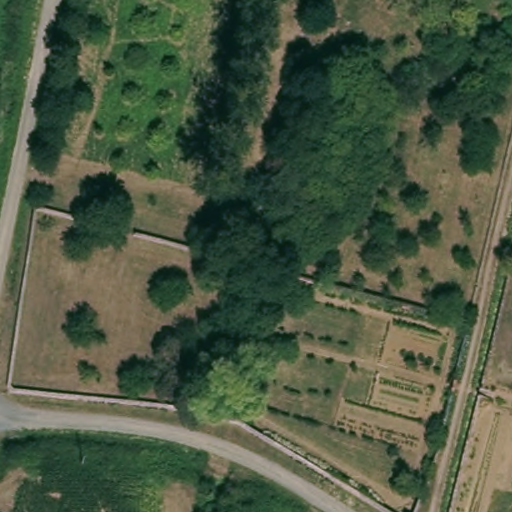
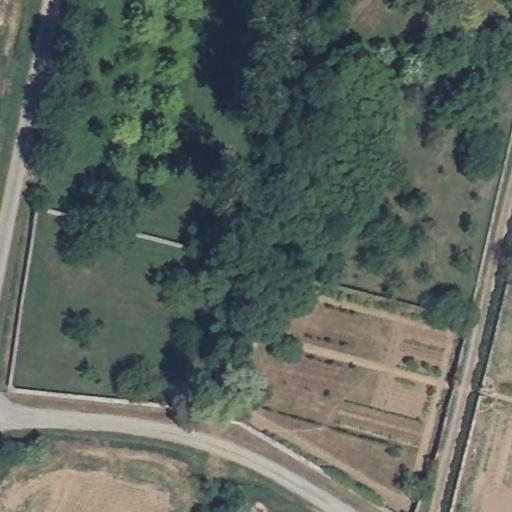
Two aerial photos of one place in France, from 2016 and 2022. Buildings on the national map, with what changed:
unchanged [(504,40),(505,31),(506,29),(512,30),(512,41),(504,40)]

